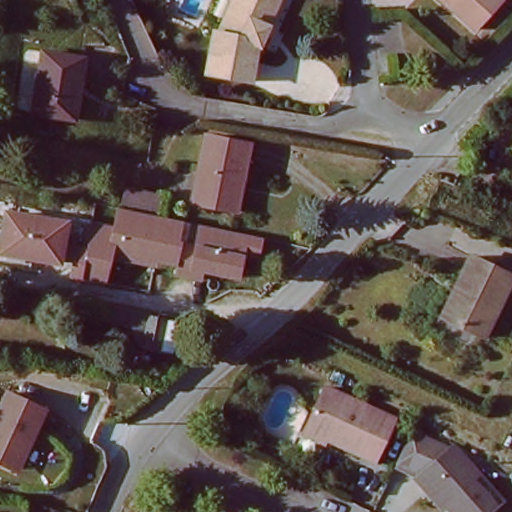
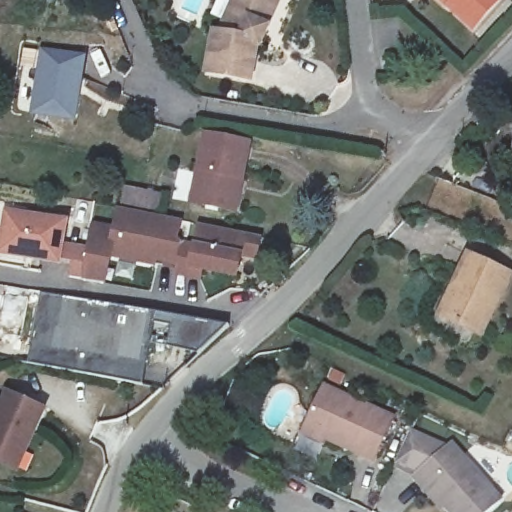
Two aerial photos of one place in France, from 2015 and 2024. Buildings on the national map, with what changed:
unchanged [(249,42),(245,78),(201,74),(206,31),(214,33),(228,0),(273,0),(263,25),(254,44),(249,42)]
unchanged [(473,35),(444,10),(449,6),(440,0),(497,0),(501,3),(473,35)]
unchanged [(81,59),(76,85),(69,84),(63,122),(28,116),(38,52),(81,59)]
unchanged [(509,159),(512,131),(512,159),(509,159)]
unchanged [(221,207),(184,200),(196,134),(243,142),(236,176),(230,209),(221,207)]
unchanged [(263,261),(243,258),(239,278),(206,272),(202,282),(174,276),(176,266),(113,257),(109,283),(70,277),(74,262),(68,260),(71,242),(89,246),(93,219),(113,225),(116,207),(123,208),(125,187),(159,193),(156,214),(184,219),(181,239),(196,242),(199,223),(269,235),(263,261)]
unchanged [(71,242),(68,260),(66,270),(0,260),(7,214),(74,224),(71,242)]
unchanged [(452,285),(468,254),(512,278),(512,285),(483,342),(448,325),(434,319),(452,285)]
new [(142,384),(28,361),(43,293),(156,316),(142,384)]
unchanged [(152,348),(155,336),(165,339),(168,321),(183,323),(178,351),(152,348)]
unchanged [(311,431),(319,417),(336,384),(400,415),(386,448),(339,426),(333,440),(311,431)]
unchanged [(0,464),(0,423),(19,396),(53,419),(32,448),(14,474),(11,472),(0,464)]
unchanged [(490,512),(460,512),(435,489),(427,497),(413,482),(452,444),(508,495),(490,512)]

